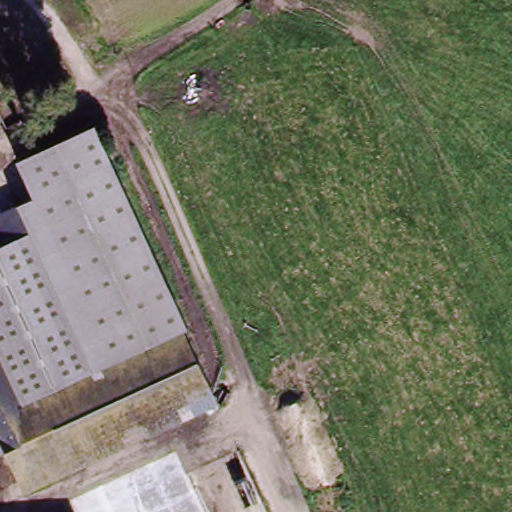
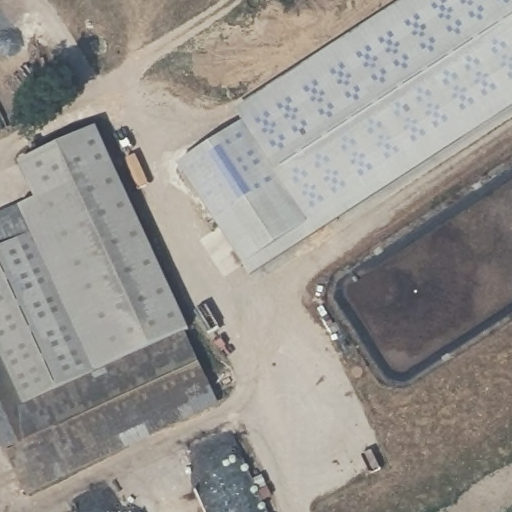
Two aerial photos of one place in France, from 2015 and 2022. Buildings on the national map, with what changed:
new [(252,277),(179,165),(243,121),(237,111),(407,0),(512,0),(512,109),(252,277)]
unchanged [(45,352),(37,355),(26,328),(0,338),(0,256),(32,240),(21,209),(34,202),(22,167),(99,130),(189,331),(55,396),(45,352)]
unchanged [(31,498),(4,448),(0,440),(0,338),(26,328),(37,355),(45,352),(55,396),(189,331),(222,412),(31,498)]

